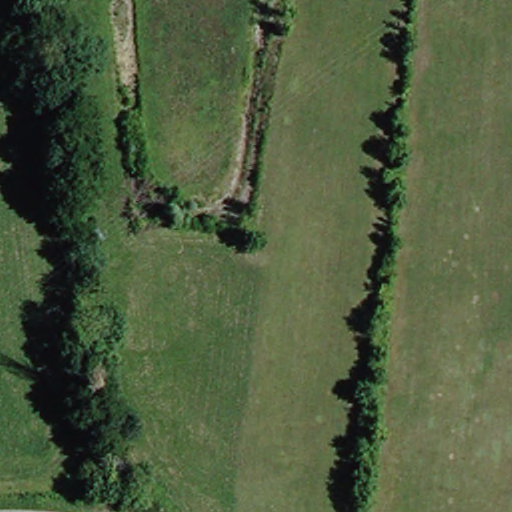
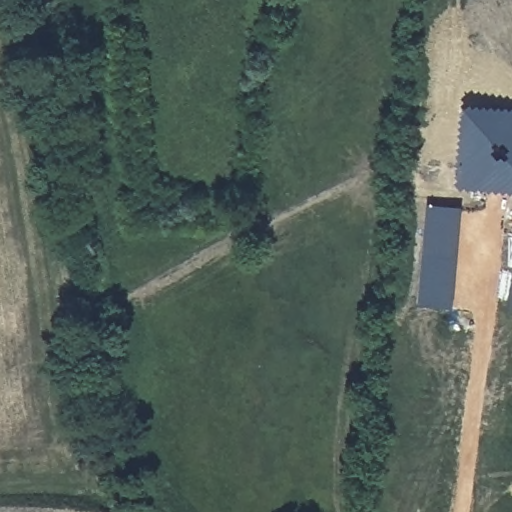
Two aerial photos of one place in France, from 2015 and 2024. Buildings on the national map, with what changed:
new [(466,103),(512,108),(512,192),(461,186),(466,103)]
new [(455,308),(421,305),(430,203),(465,206),(455,308)]

